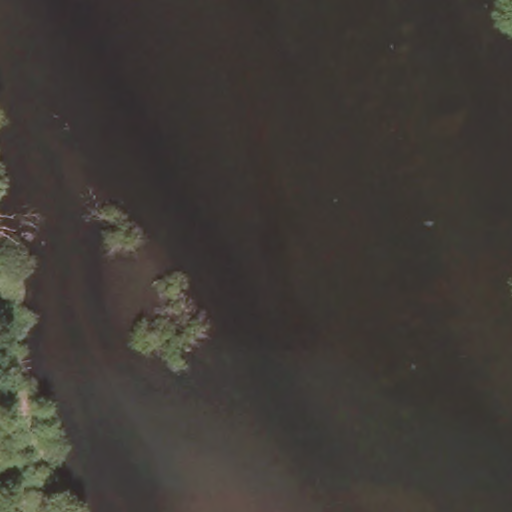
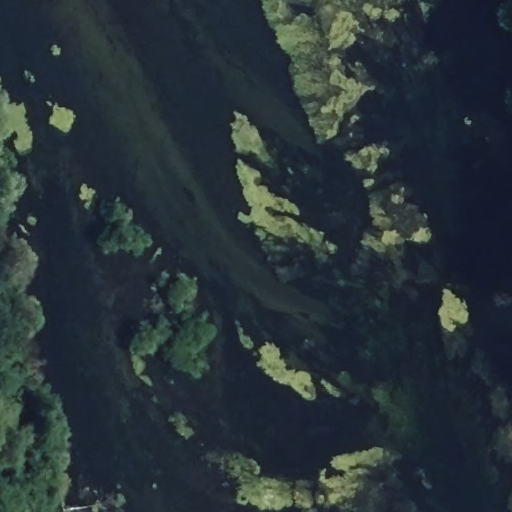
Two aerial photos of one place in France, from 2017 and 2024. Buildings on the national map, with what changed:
unchanged [(19,450),(0,450),(0,428),(18,427),(19,450)]

